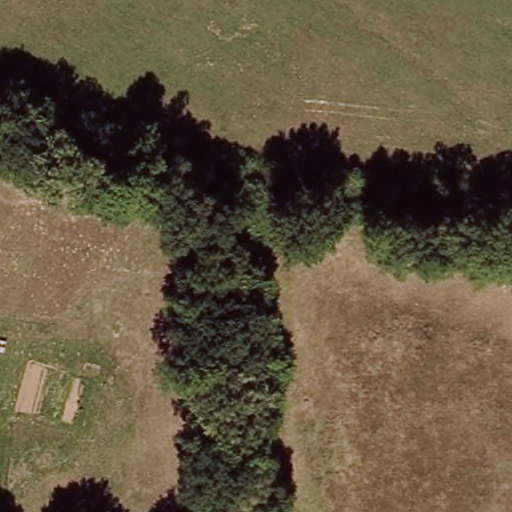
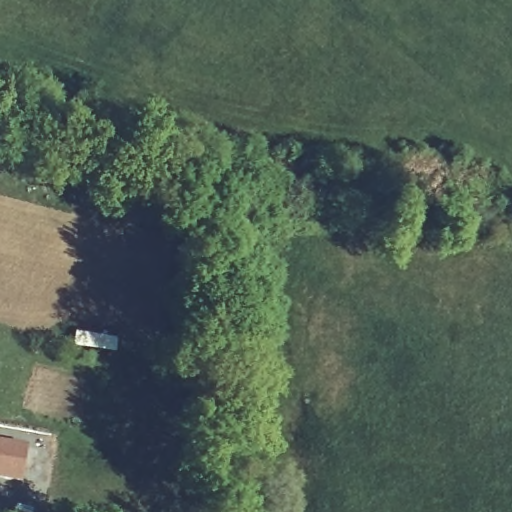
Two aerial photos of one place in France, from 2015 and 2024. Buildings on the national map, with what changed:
new [(19,486),(0,482),(0,441),(28,446),(19,486)]

